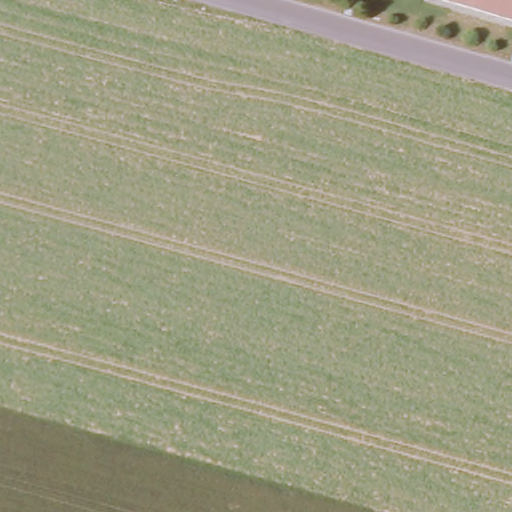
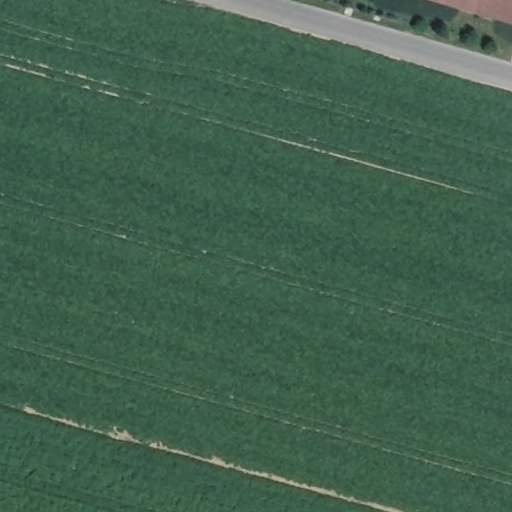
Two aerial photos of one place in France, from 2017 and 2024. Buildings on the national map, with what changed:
unchanged [(500,22),(424,0),(505,0),(500,22)]
unchanged [(505,0),(512,0),(512,26),(500,22),(505,0)]

